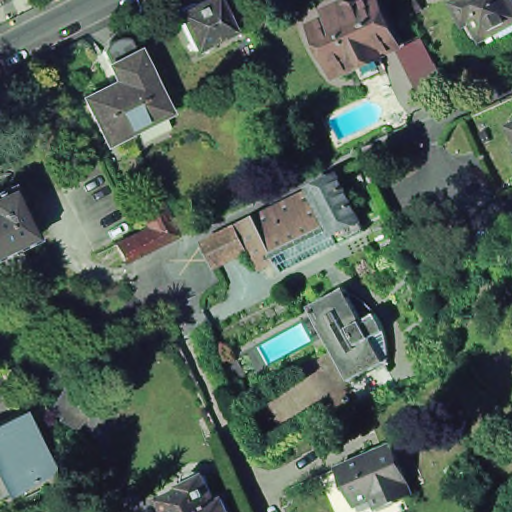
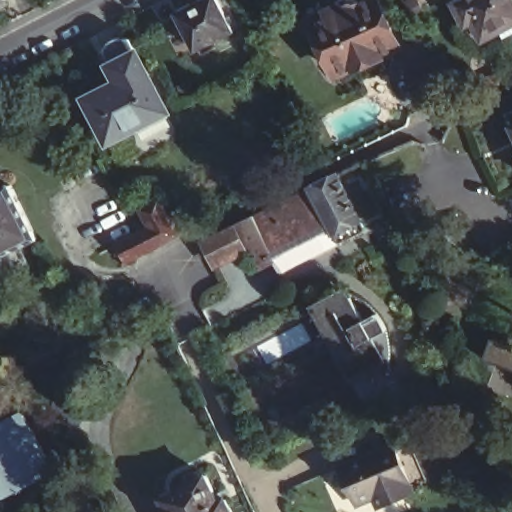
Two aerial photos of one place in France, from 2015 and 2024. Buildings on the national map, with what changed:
unchanged [(0,0),(8,0),(0,4),(0,0)]
unchanged [(186,9),(198,3),(200,6),(212,0),(223,0),(239,31),(202,50),(184,14),(187,12),(186,9)]
unchanged [(362,66),(357,67),(357,65),(337,74),(317,27),(333,19),(330,13),(356,1),(359,7),(376,0),(379,0),(400,45),(380,54),(382,56),(386,65),(366,75),(362,66)]
unchanged [(416,0),(422,8),(413,14),(408,5),(409,5),(406,0),(407,0),(416,0)]
unchanged [(512,0),(512,32),(512,38),(492,48),(480,44),(467,22),(472,20),(461,0),(512,0)]
unchanged [(136,34),(173,106),(171,107),(173,112),(144,127),(142,122),(114,137),(92,94),(125,78),(110,47),(136,34)]
unchanged [(430,54),(436,65),(416,75),(410,64),(430,54)]
unchanged [(435,66),(442,79),(420,90),(413,78),(435,66)]
unchanged [(477,81),(500,70),(506,82),(482,93),(477,81)]
unchanged [(312,188),(338,175),(366,230),(339,243),(312,188)]
unchanged [(17,185),(42,239),(26,247),(33,261),(10,272),(3,258),(0,260),(0,193),(6,190),(17,185)]
unchanged [(207,241),(238,225),(237,224),(252,217),(312,188),(339,243),(280,273),(275,263),(260,270),(250,248),(217,264),(207,241)]
unchanged [(152,227),(142,209),(160,199),(170,218),(185,211),(197,228),(180,237),(162,246),(152,251),(128,263),(118,244),(152,227)]
unchanged [(337,292),(342,302),(352,297),(347,288),(347,287),(352,297),(365,320),(378,313),(387,330),(374,338),(387,361),(350,380),(355,377),(316,305),(312,307),(311,306),(337,292)]
unchanged [(53,471),(10,493),(0,473),(0,426),(25,413),(53,471)]
unchanged [(380,498),(363,505),(355,487),(358,486),(350,466),(400,445),(420,492),(399,501),(383,507),(380,498)]
unchanged [(350,466),(358,486),(355,487),(363,505),(366,511),(364,512),(343,512),(328,475),(350,466)]
unchanged [(183,488),(183,487),(187,485),(185,481),(186,477),(188,474),(191,472),(195,471),(198,471),(202,473),(205,476),(207,475),(220,502),(227,498),(233,512),(168,512),(162,499),(183,488)]

